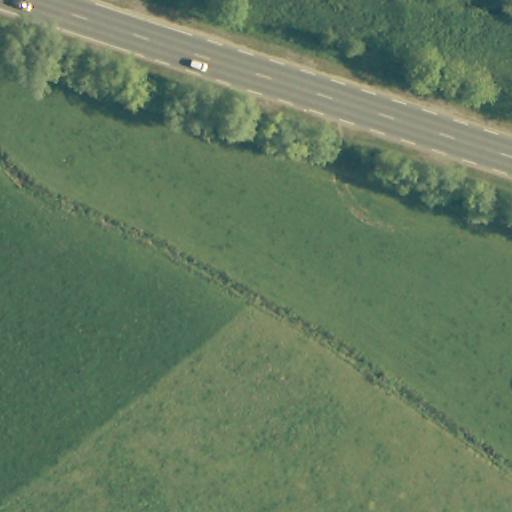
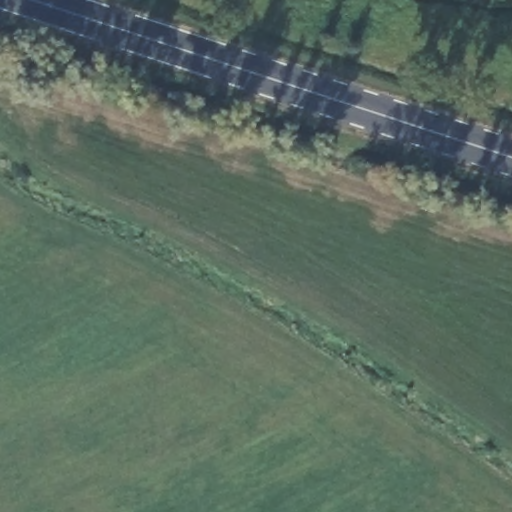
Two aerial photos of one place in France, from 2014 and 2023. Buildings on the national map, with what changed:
[]

